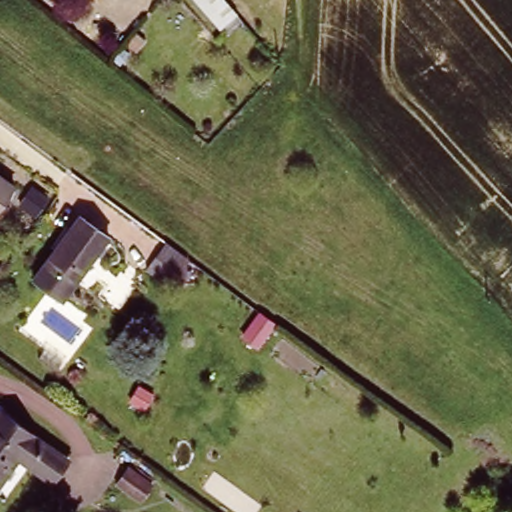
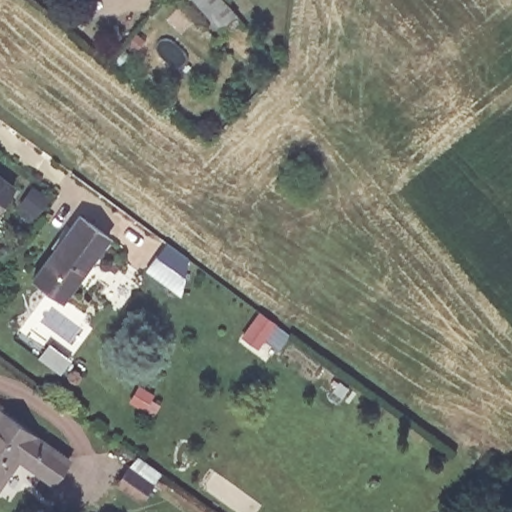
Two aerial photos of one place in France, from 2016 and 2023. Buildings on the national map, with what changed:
unchanged [(205,0),(222,0),(238,18),(229,26),(205,0)]
unchanged [(0,196),(0,188),(3,191),(0,196)]
unchanged [(58,298),(29,277),(76,215),(103,236),(58,298)]
unchanged [(188,286),(151,254),(168,233),(193,249),(188,286)]
unchanged [(15,459),(0,477),(0,406),(1,404),(70,461),(53,484),(15,459)]

